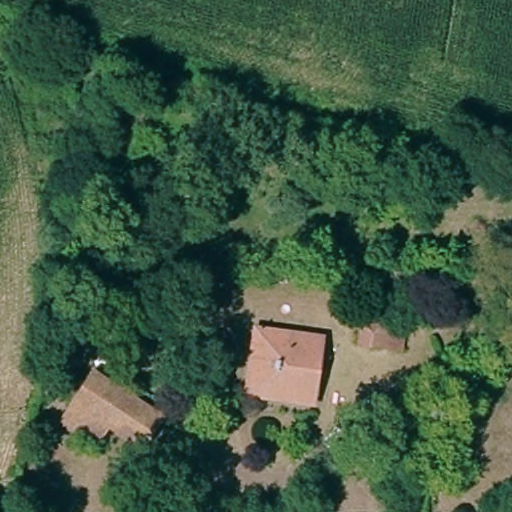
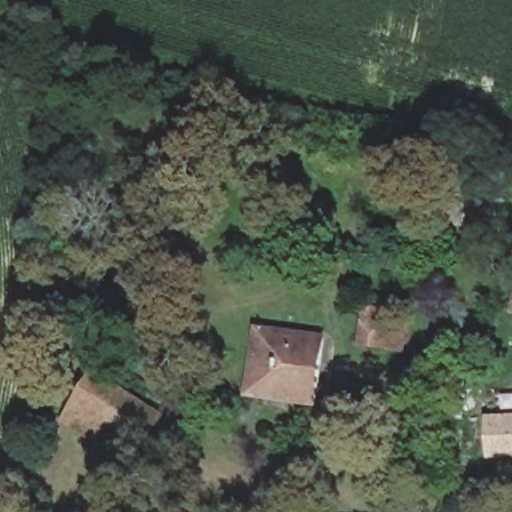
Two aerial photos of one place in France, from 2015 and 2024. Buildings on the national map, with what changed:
unchanged [(481,324),(485,288),(512,291),(512,327),(481,324)]
unchanged [(361,344),(367,311),(396,316),(395,325),(411,328),(406,352),(361,344)]
unchanged [(479,343),(481,324),(512,327),(512,348),(479,343)]
unchanged [(314,406),(253,396),(262,334),(324,343),(314,406)]
unchanged [(63,424),(73,410),(93,379),(159,421),(138,452),(106,432),(97,446),(63,424)]
new [(512,415),(512,458),(487,460),(485,416),(512,415)]

